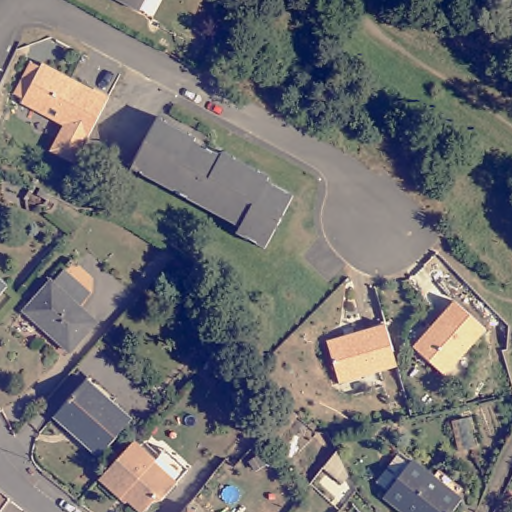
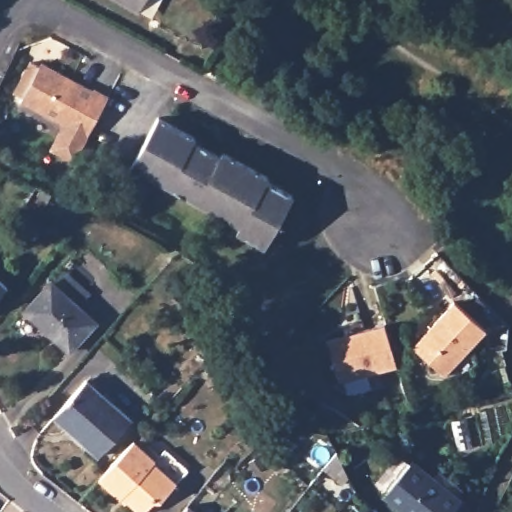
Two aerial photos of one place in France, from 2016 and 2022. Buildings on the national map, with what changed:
unchanged [(108,0),(147,0),(138,16),(108,0)]
unchanged [(51,149),(65,122),(23,100),(25,97),(16,92),(22,82),(34,60),(43,65),(45,61),(95,90),(96,88),(111,97),(74,162),(51,149)]
unchanged [(161,118),(196,137),(193,141),(222,157),(224,153),(270,178),(268,182),(295,197),(266,249),(239,234),(242,229),(133,169),(161,118)]
unchanged [(72,356),(28,317),(55,286),(58,288),(70,275),(96,298),(84,312),(99,326),(72,356)]
unchanged [(0,293),(0,280),(6,286),(0,293)]
unchanged [(448,300),(468,314),(484,326),(448,376),(412,349),(448,300)]
unchanged [(337,382),(323,339),(382,321),(395,364),(337,382)]
unchanged [(97,457),(52,417),(85,380),(129,419),(97,457)]
unchanged [(96,479),(132,438),(153,455),(150,459),(169,475),(174,479),(166,489),(160,495),(151,496),(142,507),(129,497),(124,503),(117,496),(96,479)]
unchanged [(396,512),(385,504),(413,467),(437,485),(444,476),(468,494),(461,503),(464,506),(460,512),(396,512)]
unchanged [(180,512),(186,503),(198,512),(180,512)]

